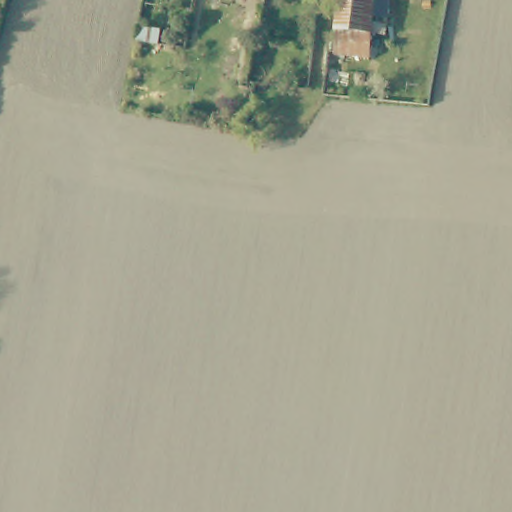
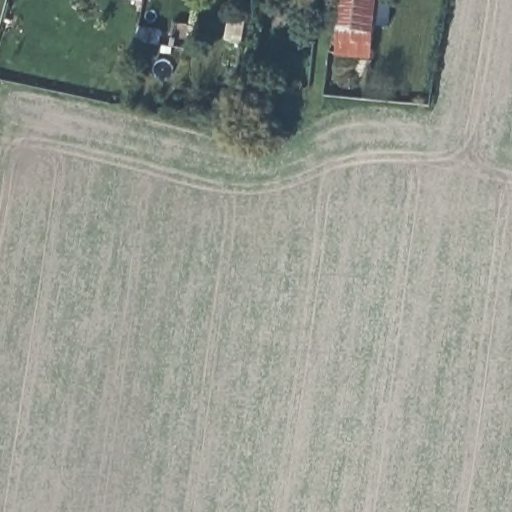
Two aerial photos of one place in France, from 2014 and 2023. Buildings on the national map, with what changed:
unchanged [(374,64),(338,60),(343,0),(381,0),(374,64)]

